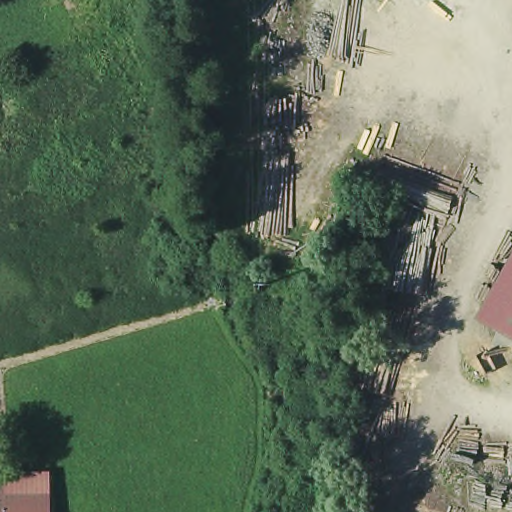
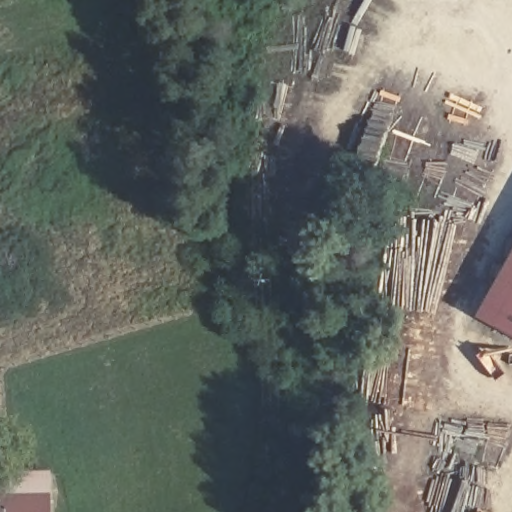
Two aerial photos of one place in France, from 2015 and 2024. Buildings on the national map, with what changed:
unchanged [(477,315),(512,254),(512,337),(477,315)]
unchanged [(0,512),(0,496),(53,501),(53,512),(0,512)]

